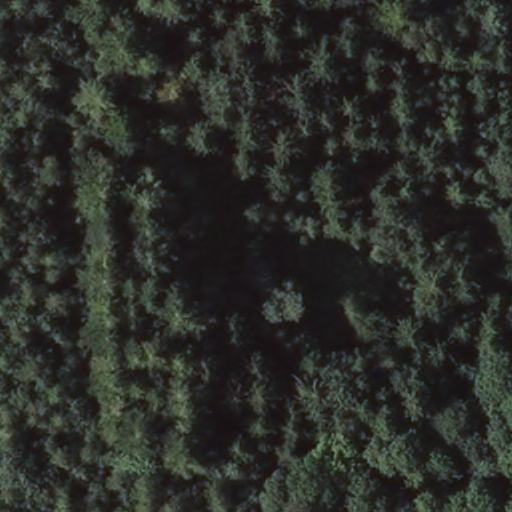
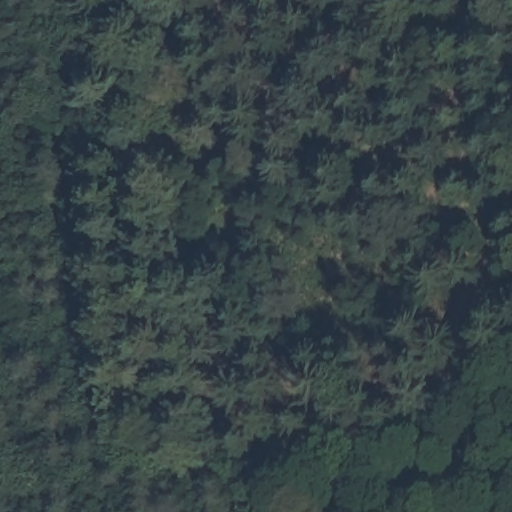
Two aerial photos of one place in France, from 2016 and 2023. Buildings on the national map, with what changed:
[]

